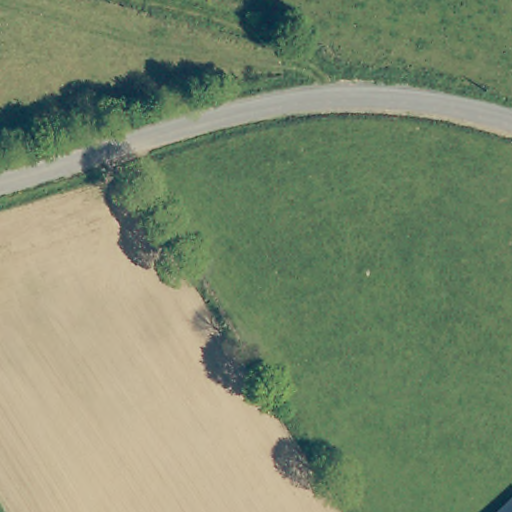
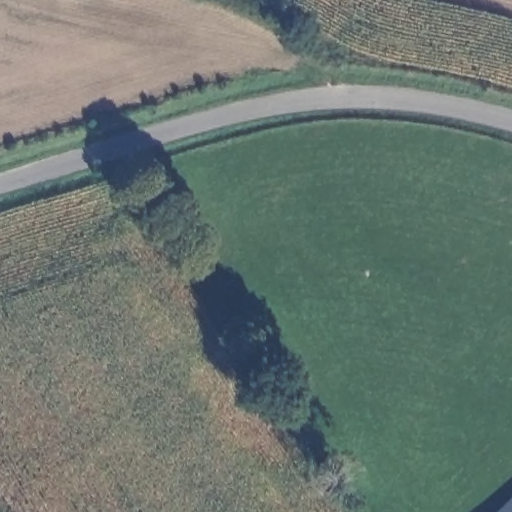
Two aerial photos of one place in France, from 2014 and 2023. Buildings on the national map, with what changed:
unchanged [(493,512),(512,492),(512,512),(493,512)]

